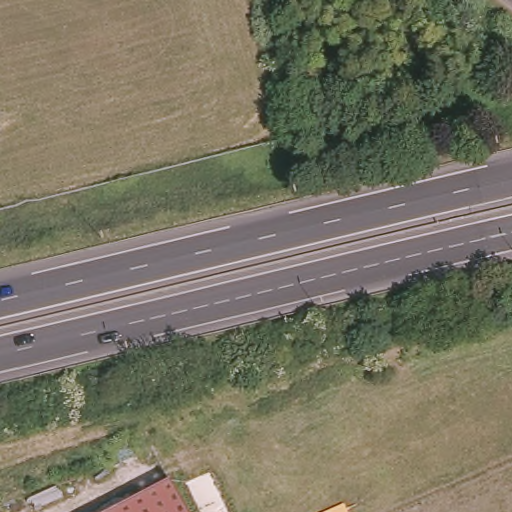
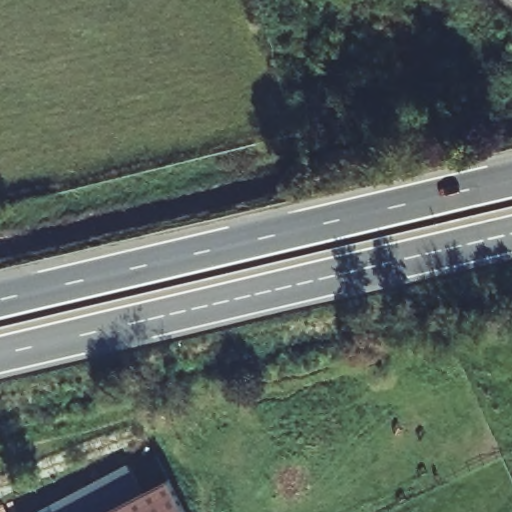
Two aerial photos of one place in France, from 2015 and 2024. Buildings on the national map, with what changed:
unchanged [(172,475),(192,512),(100,512),(172,475)]

